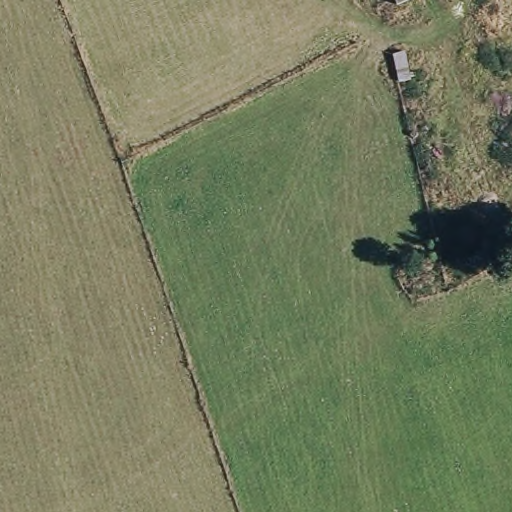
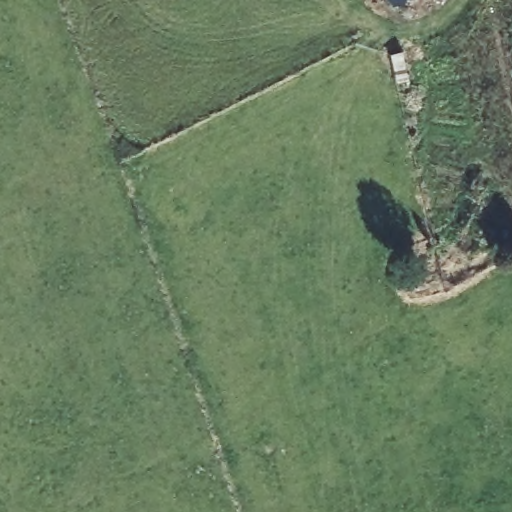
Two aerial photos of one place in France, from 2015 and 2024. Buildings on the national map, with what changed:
unchanged [(395,0),(407,0),(397,5),(395,0)]

